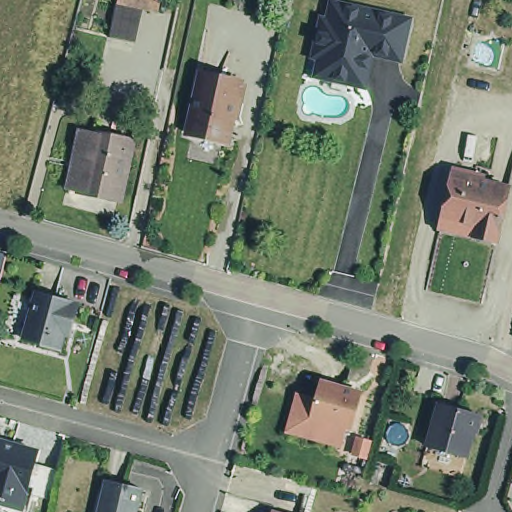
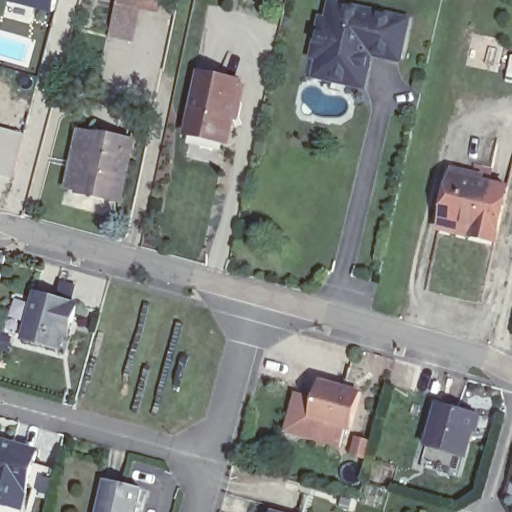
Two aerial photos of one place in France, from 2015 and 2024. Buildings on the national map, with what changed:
new [(54,12),(7,2),(7,0),(57,0),(54,12)]
unchanged [(170,66),(151,61),(160,19),(144,17),(139,37),(107,27),(115,0),(181,0),(170,66)]
unchanged [(414,19),(403,65),(374,60),(367,91),(316,80),(320,63),(313,62),(322,19),(327,20),(330,1),(414,19)]
unchanged [(245,76),(245,78),(247,79),(244,96),(240,95),(232,137),(190,128),(203,67),(245,76)]
unchanged [(139,134),(126,195),(82,186),(70,182),(84,123),(96,126),(96,125),(139,134)]
new [(23,132),(11,179),(0,176),(0,127),(23,132)]
unchanged [(439,217),(441,208),(450,167),(452,163),(475,169),(477,170),(509,177),(495,231),(472,226),(463,223),(439,217)]
unchanged [(75,317),(70,331),(67,330),(64,345),(27,334),(40,289),(82,301),(77,318),(75,317)]
unchanged [(325,404),(330,386),(335,367),(356,373),(357,367),(362,366),(372,368),(375,373),(374,378),(377,379),(367,415),(361,413),(325,404)]
unchanged [(355,433),(329,425),(328,427),(300,419),(312,381),(330,386),(325,404),(361,413),(355,433)]
unchanged [(439,398),(477,408),(465,451),(427,441),(439,398)]
unchanged [(29,483),(22,481),(17,502),(0,498),(0,438),(7,440),(32,447),(29,458),(52,466),(45,495),(27,489),(29,483)]
unchanged [(147,484),(140,512),(101,512),(110,476),(147,484)]
unchanged [(292,512),(275,512),(276,507),(292,512)]

